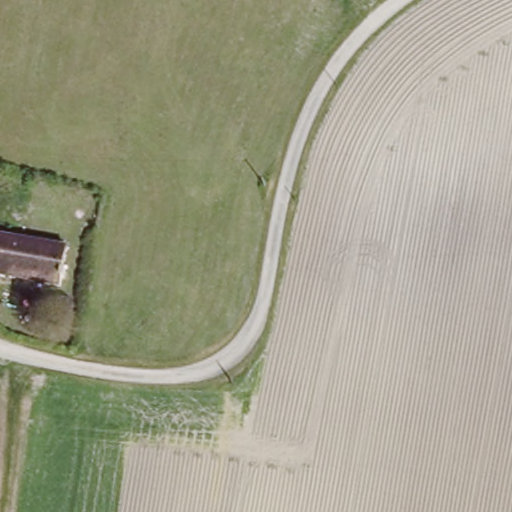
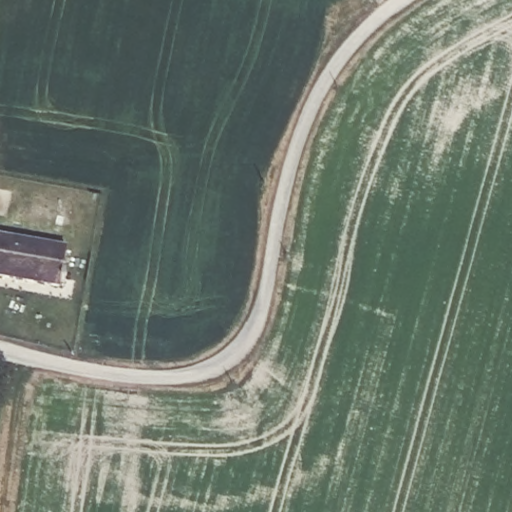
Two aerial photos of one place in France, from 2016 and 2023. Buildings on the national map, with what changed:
unchanged [(66,249),(59,283),(0,271),(0,235),(66,249)]

